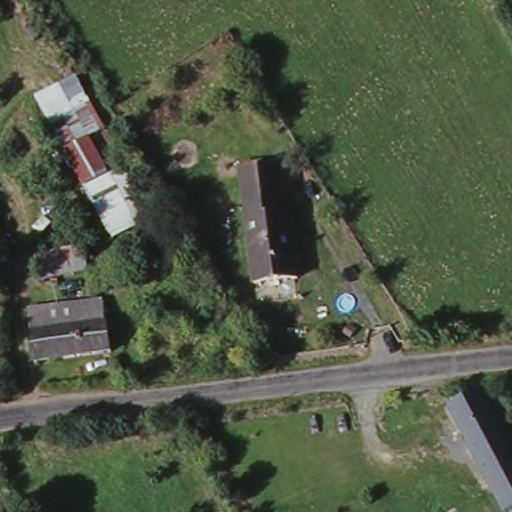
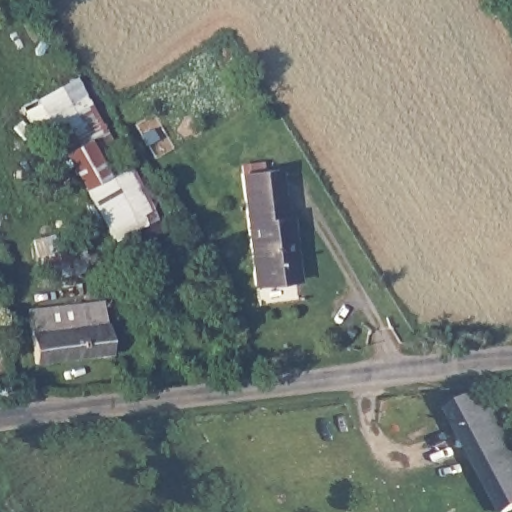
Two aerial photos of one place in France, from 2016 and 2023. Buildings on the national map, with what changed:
unchanged [(32,97),(75,77),(91,104),(51,125),(32,97)]
unchanged [(51,125),(91,104),(123,161),(84,187),(51,125)]
unchanged [(123,161),(154,218),(111,237),(84,187),(123,161)]
unchanged [(240,170),(280,166),(285,204),(287,204),(288,217),(292,217),(300,283),(254,287),(240,170)]
unchanged [(39,257),(88,247),(95,276),(45,284),(39,257)]
unchanged [(114,356),(40,365),(34,317),(106,305),(114,356)]
unchanged [(505,492),(458,403),(490,384),(497,398),(500,397),(512,419),(512,505),(505,492)]
unchanged [(248,479),(257,494),(256,497),(260,503),(253,508),(248,501),(246,501),(236,485),(248,479)]

